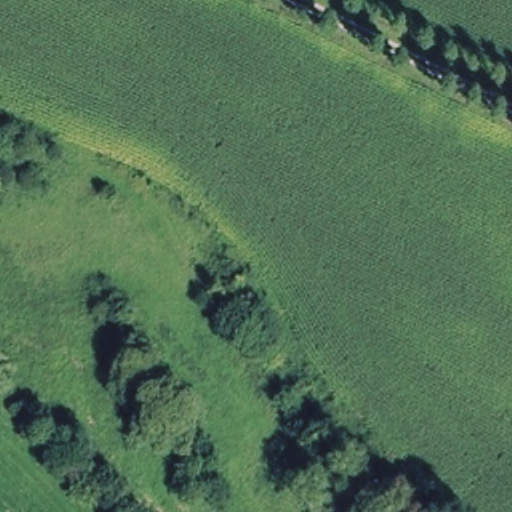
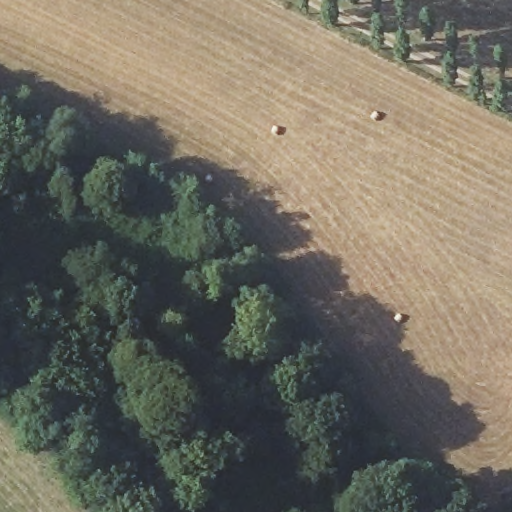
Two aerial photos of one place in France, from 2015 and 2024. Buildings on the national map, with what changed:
[]

